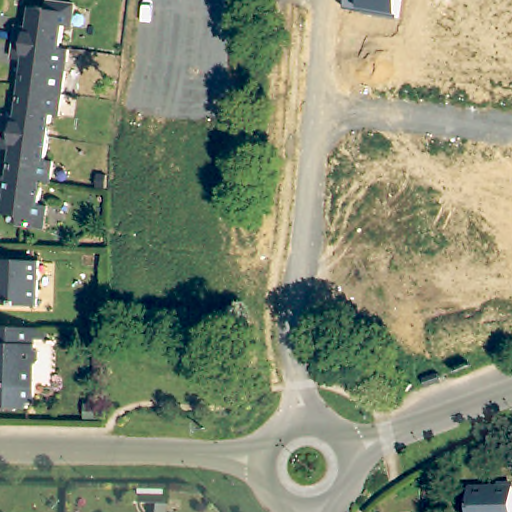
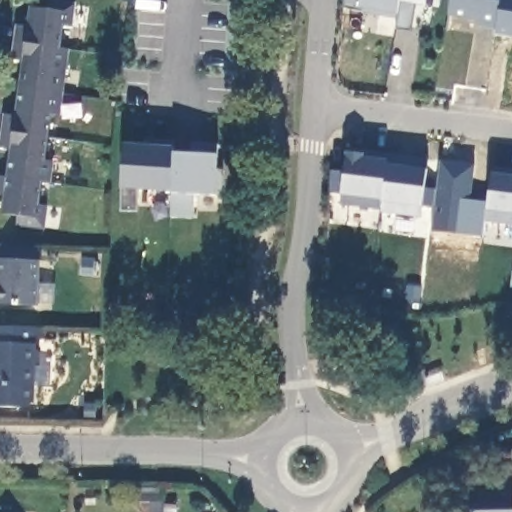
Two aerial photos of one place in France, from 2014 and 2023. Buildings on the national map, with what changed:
unchanged [(17,56),(21,23),(31,24),(34,4),(51,5),(51,0),(58,0),(78,3),(75,24),(68,24),(64,46),(71,48),(66,76),(23,74),(25,58),(17,56)]
unchanged [(397,19),(344,10),(345,0),(400,0),(398,14),(397,19)]
unchanged [(418,4),(412,31),(396,29),(397,19),(398,14),(400,0),(441,0),(440,8),(418,4)]
new [(480,26),(480,20),(449,15),(452,0),(500,0),(496,29),(480,26)]
unchanged [(11,148),(2,145),(7,110),(17,111),(23,74),(66,76),(61,114),(54,114),(48,158),(54,159),(53,164),(10,162),(11,148)]
new [(174,146),(174,153),(191,153),(191,142),(219,144),(217,153),(216,195),(196,195),(192,217),(171,216),(172,193),(137,189),(136,210),(121,210),(121,189),(124,143),(174,146)]
new [(380,210),(341,205),(340,194),(328,192),(332,171),(343,173),(346,151),(388,156),(382,199),(380,210)]
new [(435,209),(430,208),(423,208),(423,217),(380,210),(388,156),(405,156),(411,158),(429,160),(426,189),(432,190),(437,190),(435,209)]
new [(441,161),(476,166),(470,207),(488,209),(487,221),(484,239),(432,232),(441,161)]
unchanged [(51,181),(44,180),(41,202),(48,203),(44,225),(16,221),(16,213),(1,210),(4,191),(0,190),(0,173),(7,174),(10,162),(53,164),(51,181)]
new [(492,173),(512,175),(512,224),(487,221),(492,173)]
unchanged [(37,303),(0,301),(0,257),(38,260),(37,303)]
unchanged [(0,408),(0,328),(34,330),(33,351),(38,354),(38,364),(33,368),(31,389),(30,389),(29,404),(25,404),(25,409),(0,408)]
unchanged [(425,379),(441,373),(444,382),(428,387),(425,379)]
unchanged [(507,488),(512,488),(512,512),(476,512),(476,501),(507,500),(507,488)]

